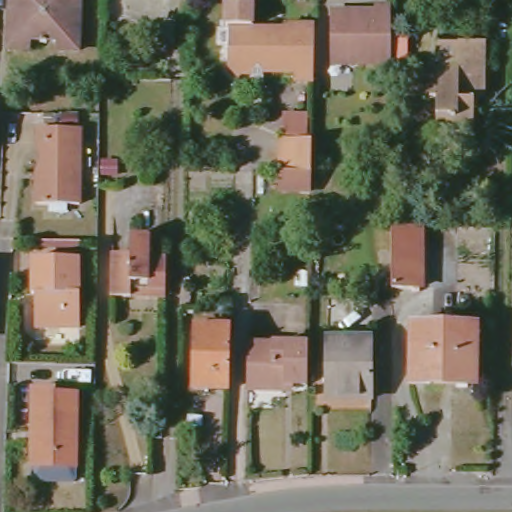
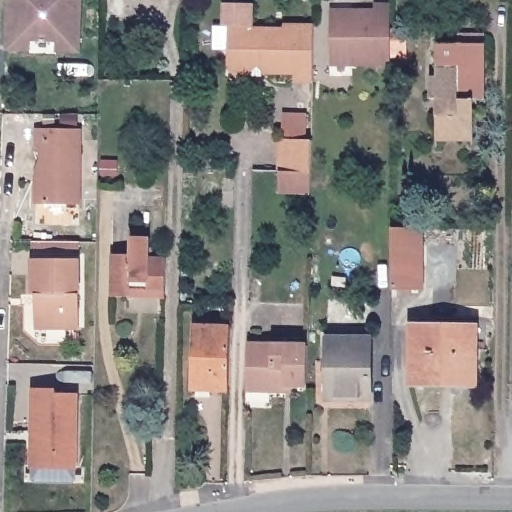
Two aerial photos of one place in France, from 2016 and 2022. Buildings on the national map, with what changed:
unchanged [(52,0),(82,0),(80,53),(58,53),(59,43),(32,42),(32,52),(10,51),(11,0),(41,0),(41,2),(52,3),(52,0)]
unchanged [(295,68),(263,68),(263,63),(255,63),(255,69),(243,69),(239,73),(228,61),(230,40),(230,25),(236,24),(236,22),(227,21),(227,0),(241,0),(254,0),(253,25),(286,26),(286,21),(315,22),(314,76),(295,77),(295,68)]
unchanged [(330,60),(330,15),(350,15),(351,11),(375,10),(375,3),(390,2),(391,67),(351,67),(330,67),(330,60)]
unchanged [(437,148),(438,108),(431,108),(431,86),(438,86),(439,53),(460,54),(460,44),(486,44),(486,110),(475,109),(474,148),(437,148)]
unchanged [(36,202),(37,187),(41,174),(42,151),(36,140),(37,127),(82,128),(80,203),(36,202)]
unchanged [(275,187),(275,166),(276,135),(307,135),(307,166),(306,188),(275,187)]
unchanged [(425,228),(426,291),(392,291),(392,227),(425,228)]
unchanged [(131,297),(111,296),(113,255),(132,254),(133,236),(150,236),(150,257),(167,257),(167,290),(166,297),(131,297)]
unchanged [(36,303),(39,302),(38,292),(33,292),(33,256),(81,256),(81,325),(36,325),(36,303)]
unchanged [(412,324),(476,325),(475,378),(431,377),(431,384),(411,384),(412,324)]
unchanged [(195,372),(197,326),(231,327),(228,390),(209,389),(195,388),(195,372)]
unchanged [(327,337),(371,337),(371,399),(327,399),(327,337)]
unchanged [(286,393),(267,392),(268,388),(246,388),(247,346),(307,348),(306,388),(293,387),(292,393),(286,393)]
unchanged [(33,461),(34,443),(40,443),(40,437),(35,430),(35,389),(58,389),(58,394),(77,395),(77,468),(54,468),(34,467),(33,461)]

